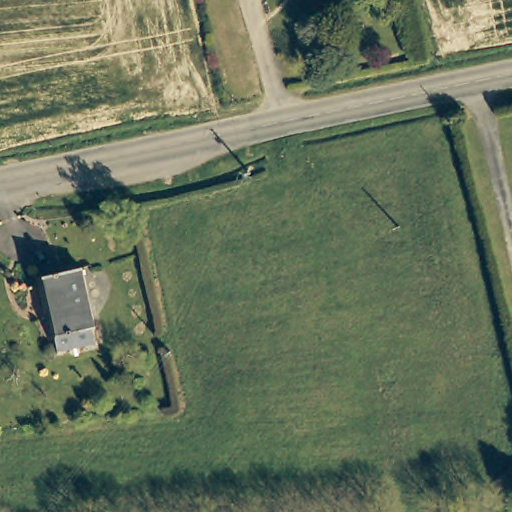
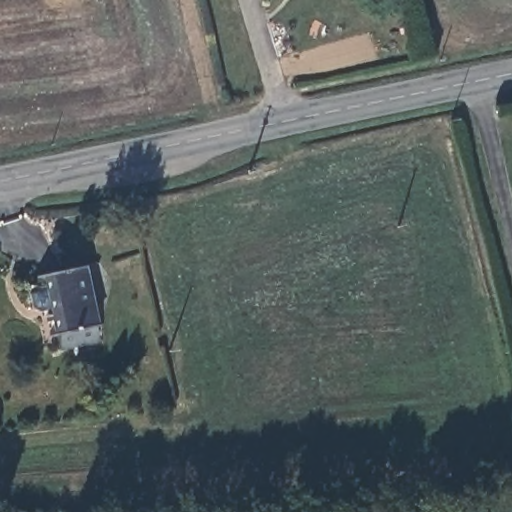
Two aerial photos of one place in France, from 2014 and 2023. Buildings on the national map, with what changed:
unchanged [(45,333),(42,334),(33,275),(78,269),(86,328),(89,345),(48,350),(45,333)]

